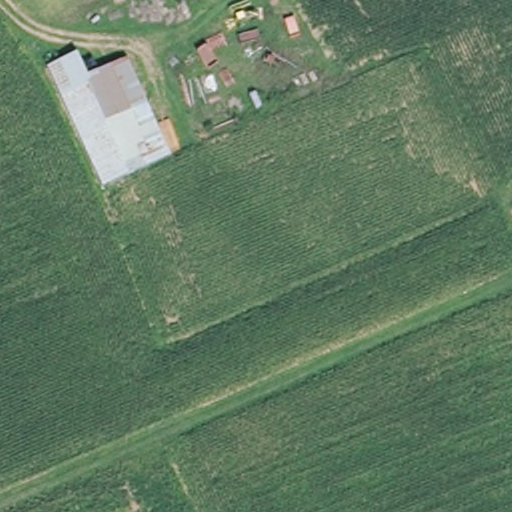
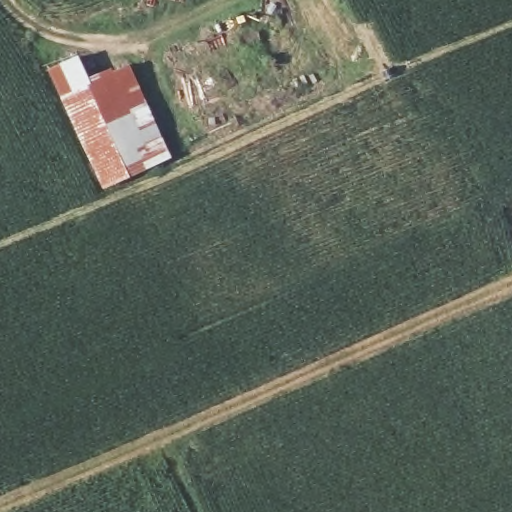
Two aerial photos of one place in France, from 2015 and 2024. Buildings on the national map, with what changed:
unchanged [(131,172),(100,190),(49,68),(77,53),(87,75),(110,126),(131,172)]
unchanged [(126,60),(153,106),(110,126),(87,75),(126,60)]
unchanged [(153,106),(176,152),(131,172),(110,126),(153,106)]

